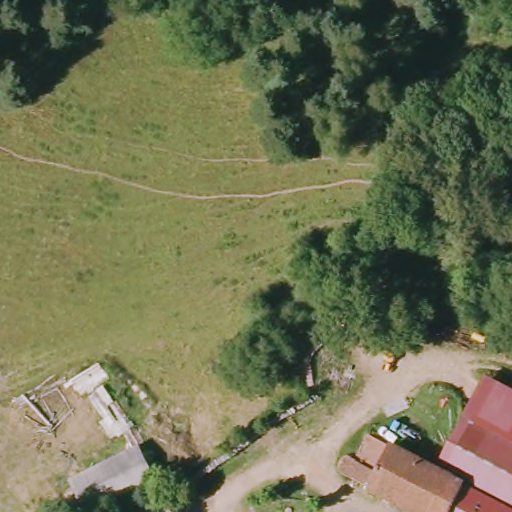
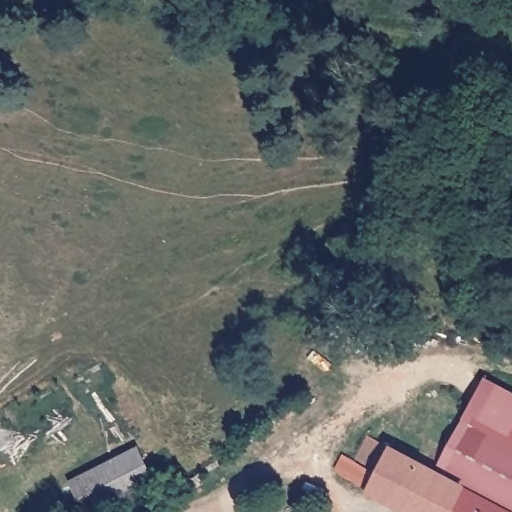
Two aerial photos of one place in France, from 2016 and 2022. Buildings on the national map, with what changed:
unchanged [(512,395),(512,447),(462,420),(484,380),(512,395)]
unchanged [(436,468),(462,420),(512,447),(512,510),(436,468)]
unchanged [(337,468),(344,460),(353,461),(368,436),(510,512),(409,512),(344,476),(337,468)]

